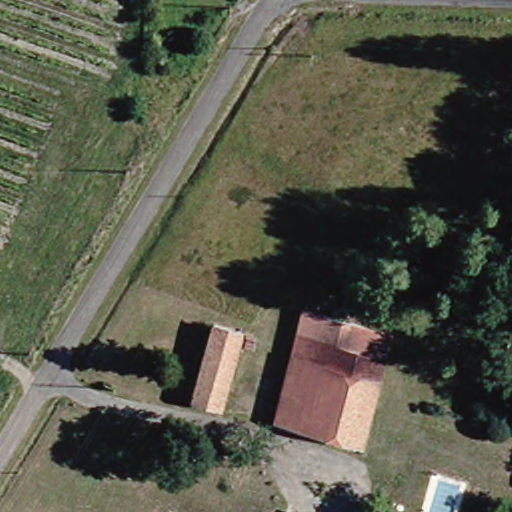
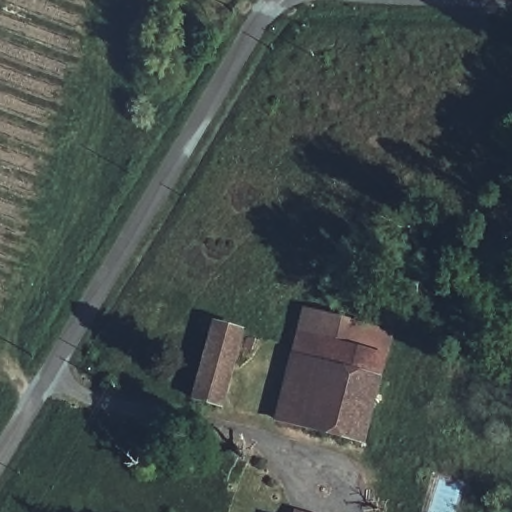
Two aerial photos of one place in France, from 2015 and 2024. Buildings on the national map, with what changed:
unchanged [(307,315),(353,326),(351,335),(347,350),(301,338),(305,323),(307,315)]
unchanged [(205,330),(237,338),(215,413),(184,405),(205,330)]
unchanged [(384,360),(361,446),(279,424),(301,338),(347,350),(384,360)]

